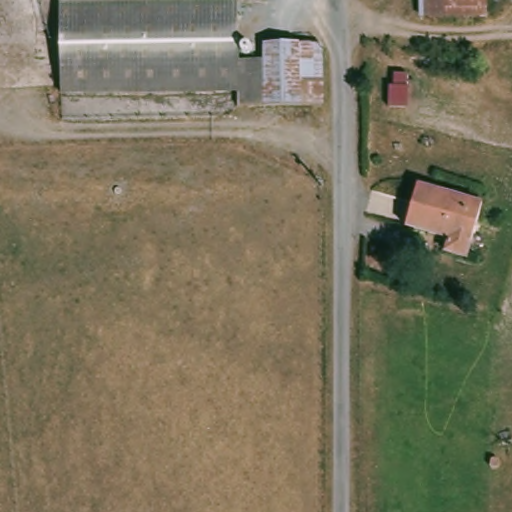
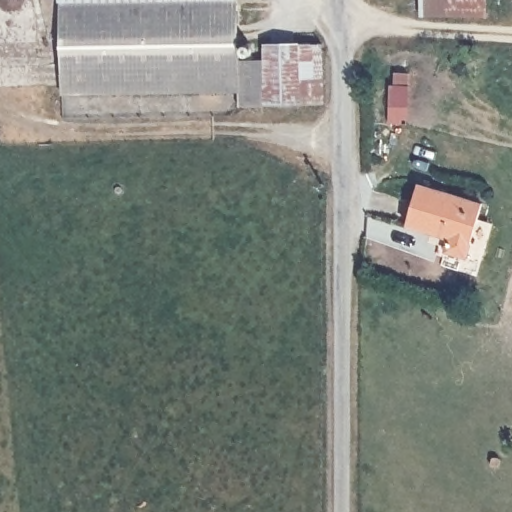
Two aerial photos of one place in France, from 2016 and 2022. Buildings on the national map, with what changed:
unchanged [(239,61),(263,60),(264,44),(323,46),(324,105),(237,105),(237,91),(62,93),(61,0),(237,0),(239,61)]
unchanged [(491,14),(423,12),(424,0),(492,0),(491,14)]
unchanged [(482,204),(466,258),(445,252),(447,238),(408,227),(422,186),(482,204)]

